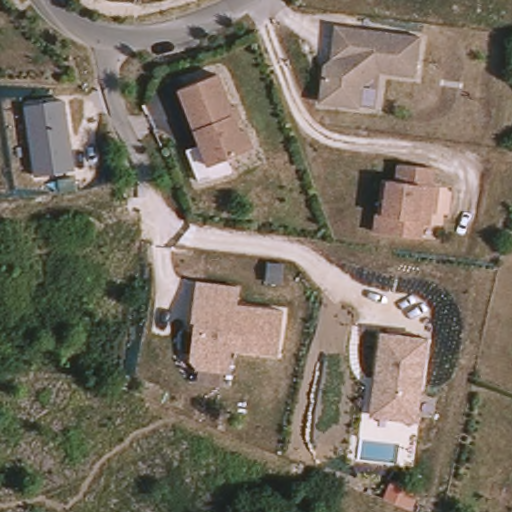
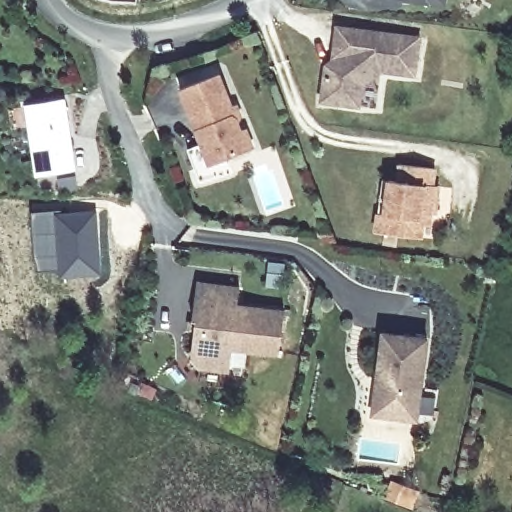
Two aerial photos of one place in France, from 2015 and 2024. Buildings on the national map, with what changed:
new [(427,5),(388,0),(428,0),(427,5)]
unchanged [(329,56),(334,23),(417,35),(411,72),(378,67),(358,82),(355,103),(318,98),(321,70),(323,62),(329,56)]
unchanged [(249,145),(206,160),(177,85),(215,70),(228,104),(224,105),(226,111),(232,114),(233,115),(237,126),(242,125),(249,145)]
unchanged [(76,170),(34,175),(23,106),(65,98),(76,170)]
unchanged [(420,235),(375,229),(378,210),(382,180),(388,180),(397,181),(400,161),(434,165),(432,182),(438,184),(447,185),(444,211),(434,210),(430,210),(429,222),(422,221),(420,235)]
new [(95,209),(99,275),(57,277),(56,270),(36,271),(30,212),(95,209)]
unchanged [(241,303),(231,370),(201,365),(193,352),(197,320),(192,319),(195,297),(241,303)]
unchanged [(287,310),(281,356),(247,350),(254,305),(287,310)]
unchanged [(378,415),(383,378),(376,377),(382,332),(429,340),(417,420),(378,415)]

